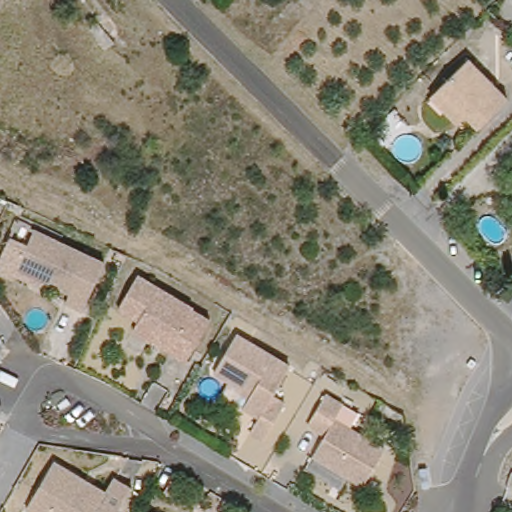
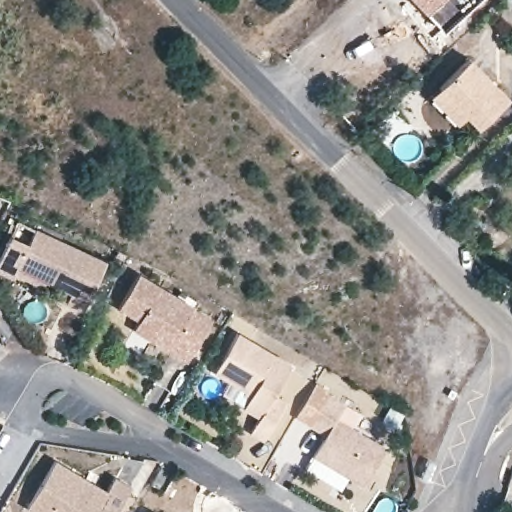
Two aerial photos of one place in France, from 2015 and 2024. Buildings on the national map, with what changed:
new [(414,0),(471,0),(440,28),(414,0)]
unchanged [(430,101),(438,93),(469,63),(509,103),(478,134),(466,121),(457,130),(430,101)]
unchanged [(18,274),(17,277),(0,270),(14,238),(31,246),(38,229),(110,262),(87,311),(70,303),(75,293),(50,281),(46,287),(18,274)]
unchanged [(155,340),(137,330),(143,320),(122,308),(143,274),(198,307),(197,309),(215,319),(201,344),(191,361),(155,340)]
unchanged [(234,376),(220,367),(241,329),(295,361),(277,391),(291,399),(270,436),(255,427),(263,411),(248,402),(226,390),(234,376)]
unchanged [(359,418),(350,433),(385,453),(362,490),(348,482),(313,461),(325,440),(308,429),(326,399),(343,409),(359,418)]
unchanged [(106,491),(113,478),(130,488),(116,512),(33,512),(26,509),(55,461),(106,491)]

